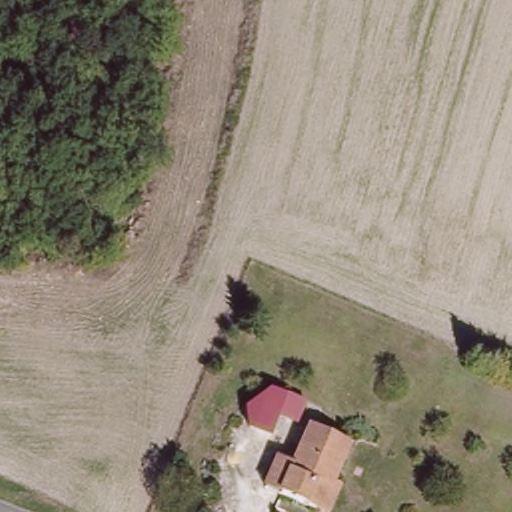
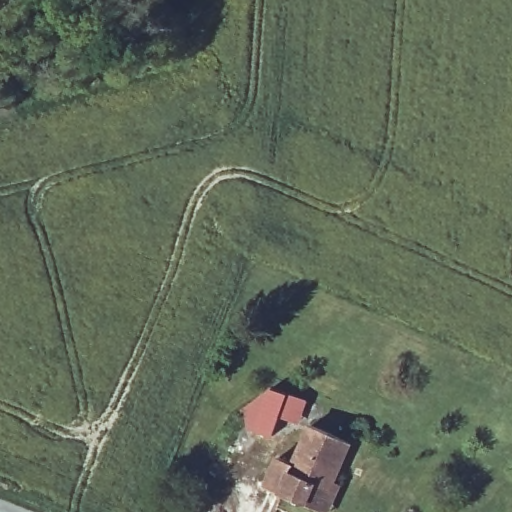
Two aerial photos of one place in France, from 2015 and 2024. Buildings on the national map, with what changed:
unchanged [(307,402),(298,425),(280,417),(273,436),(249,428),(249,404),(271,388),(307,402)]
unchanged [(324,512),(319,509),(267,484),(278,456),(295,462),(311,425),(350,442),(332,479),(342,483),(328,512),(324,512)]

